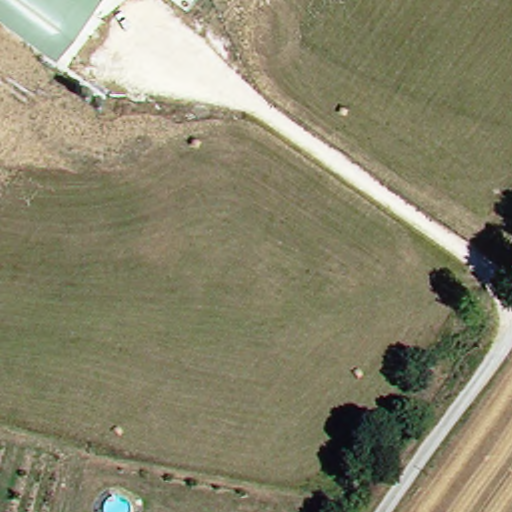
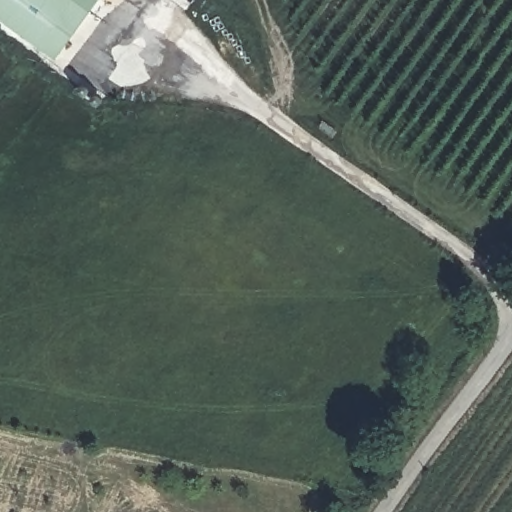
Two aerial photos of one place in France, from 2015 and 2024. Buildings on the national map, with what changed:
unchanged [(52,61),(0,23),(0,0),(74,0),(89,10),(52,61)]

